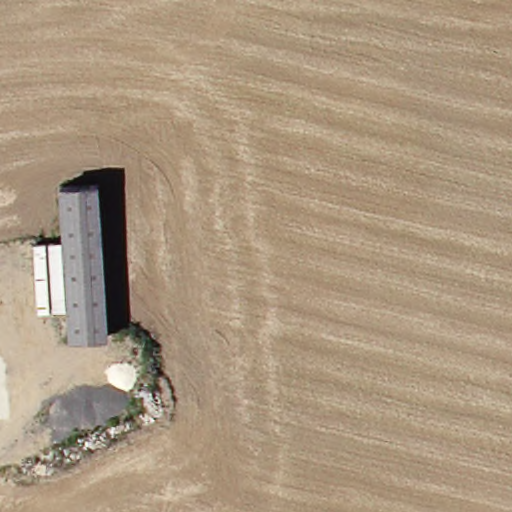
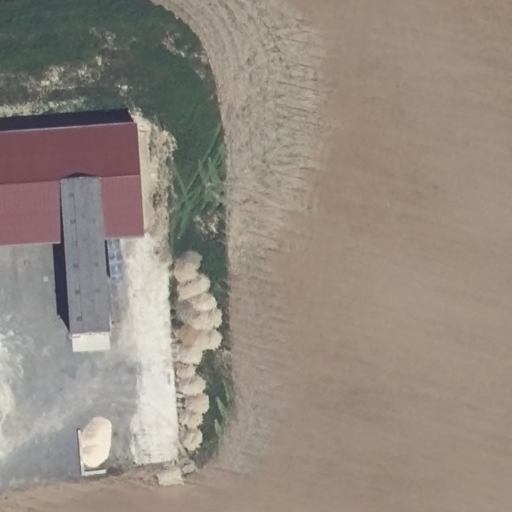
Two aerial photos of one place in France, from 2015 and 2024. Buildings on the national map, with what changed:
new [(145,237),(104,239),(101,180),(66,181),(69,241),(0,245),(0,133),(138,125),(145,237)]
unchanged [(72,332),(69,241),(66,181),(101,180),(104,239),(107,330),(72,332)]

